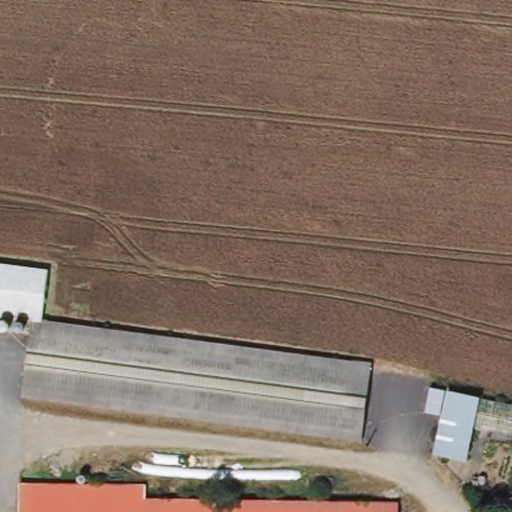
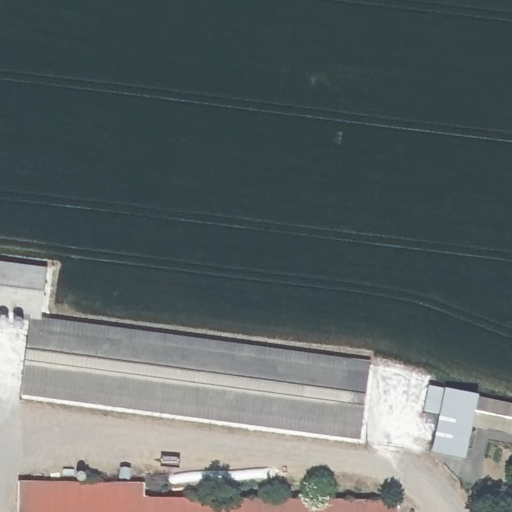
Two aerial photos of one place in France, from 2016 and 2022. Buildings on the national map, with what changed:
unchanged [(41,322),(30,320),(0,316),(0,262),(49,268),(41,322)]
unchanged [(371,366),(361,445),(21,400),(30,320),(371,366)]
unchanged [(437,460),(436,458),(442,396),(470,399),(473,399),(470,429),(466,463),(462,462),(437,460)]
unchanged [(512,403),(512,433),(470,429),(473,399),(512,403)]
unchanged [(145,500),(396,505),(396,512),(18,512),(18,486),(145,488),(145,500)]

